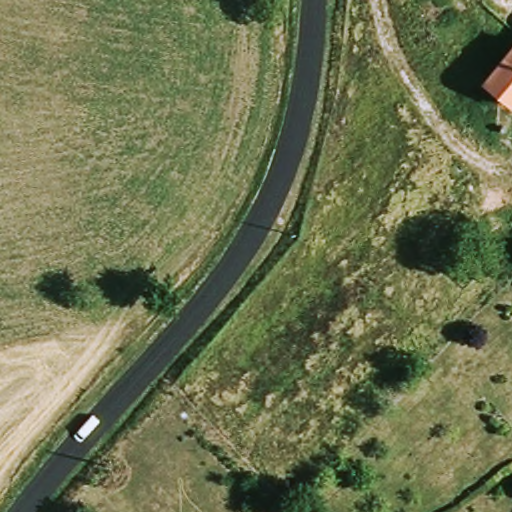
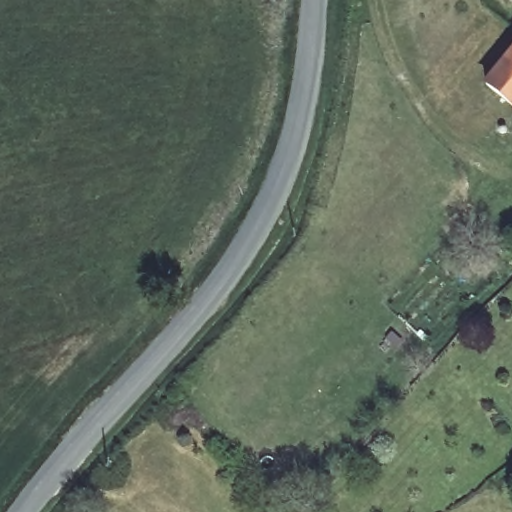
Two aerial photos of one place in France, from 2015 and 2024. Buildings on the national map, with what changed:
unchanged [(484,95),(512,56),(512,114),(510,116),(505,113),(484,95)]

